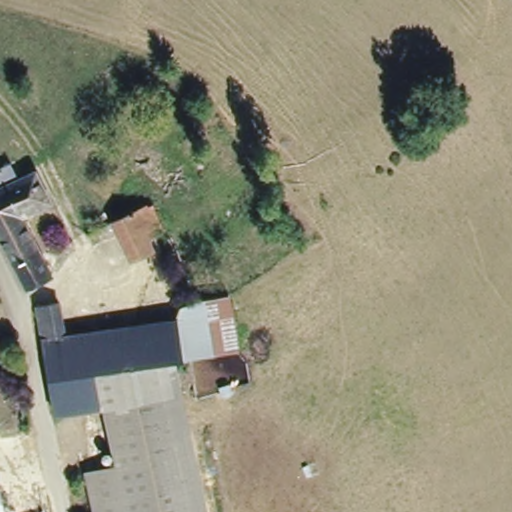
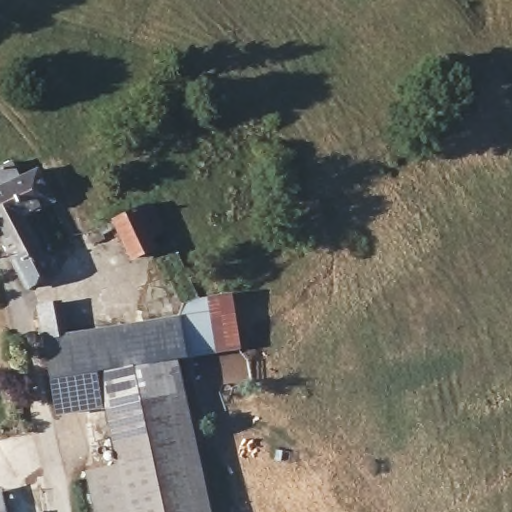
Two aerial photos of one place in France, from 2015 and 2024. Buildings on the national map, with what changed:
unchanged [(24,213),(54,279),(26,293),(0,239),(0,158),(4,157),(14,178),(32,166),(44,190),(46,197),(24,213)]
unchanged [(133,259),(120,228),(109,232),(111,240),(95,244),(91,233),(117,219),(140,211),(139,208),(151,203),(164,233),(151,237),(157,250),(133,259)]
unchanged [(227,293),(240,349),(187,356),(181,316),(182,301),(191,293),(227,293)]
unchanged [(166,360),(47,374),(37,334),(32,302),(56,299),(62,330),(181,316),(187,356),(166,360)]
unchanged [(187,356),(218,512),(199,512),(166,360),(187,356)]
unchanged [(118,462),(107,405),(102,406),(55,416),(52,400),(47,374),(166,360),(199,512),(98,512),(88,470),(118,462)]
unchanged [(1,512),(0,512),(0,506),(1,512)]

